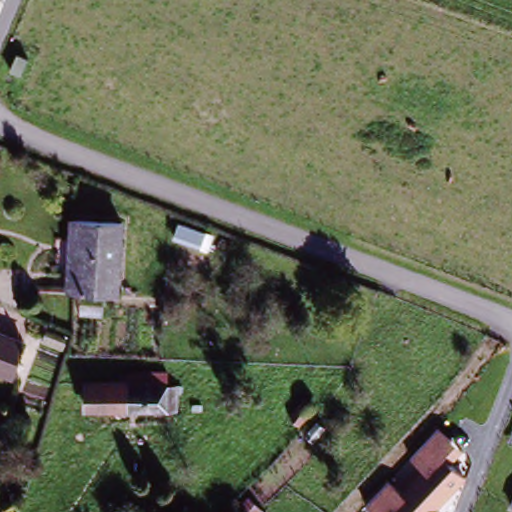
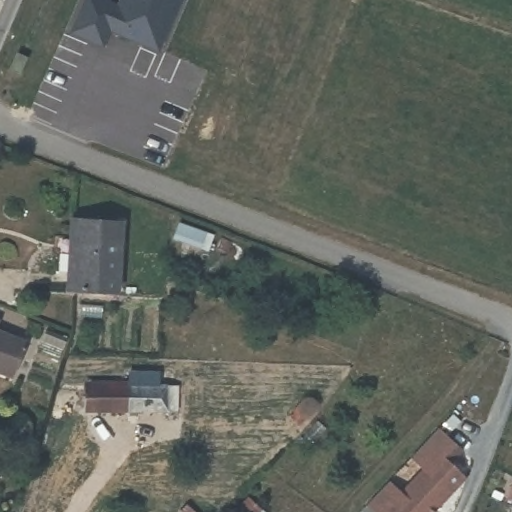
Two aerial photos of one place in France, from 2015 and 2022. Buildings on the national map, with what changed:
new [(116,0),(180,0),(158,51),(109,31),(102,46),(68,32),(81,0),(106,0),(115,4),(116,0)]
new [(18,54),(28,58),(20,75),(10,71),(18,54)]
unchanged [(124,223),(116,295),(66,287),(74,217),(124,223)]
unchanged [(216,236),(241,246),(236,259),(211,250),(216,236)]
unchanged [(14,380),(0,374),(0,338),(26,349),(14,380)]
unchanged [(88,418),(85,392),(182,387),(185,412),(168,413),(120,416),(88,418)]
unchanged [(408,499),(430,479),(411,459),(440,429),(464,452),(451,467),(465,479),(436,512),(369,512),(364,508),(390,480),(408,499)]
unchanged [(511,503),(512,500),(512,503),(511,503)]
unchanged [(180,505),(188,512),(175,512),(180,505)]

